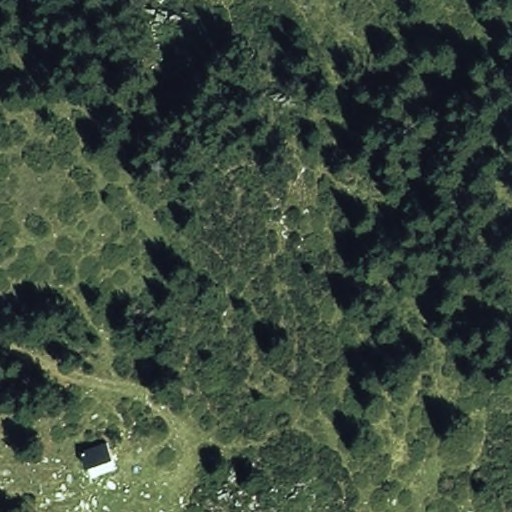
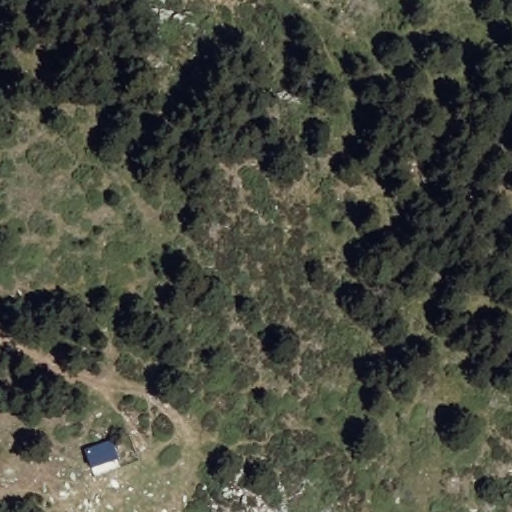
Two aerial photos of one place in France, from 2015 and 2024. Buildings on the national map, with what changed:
unchanged [(85,448),(113,438),(119,457),(92,468),(85,448)]

